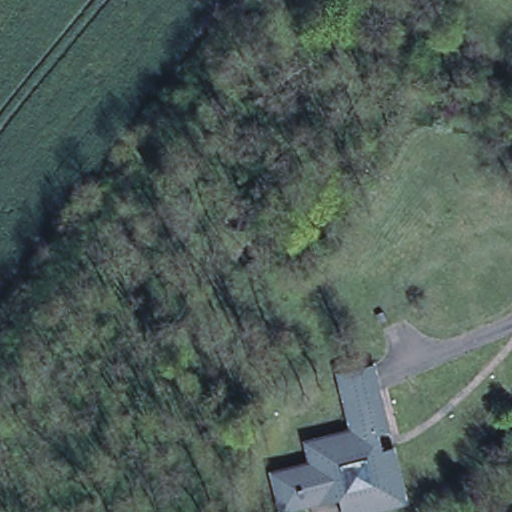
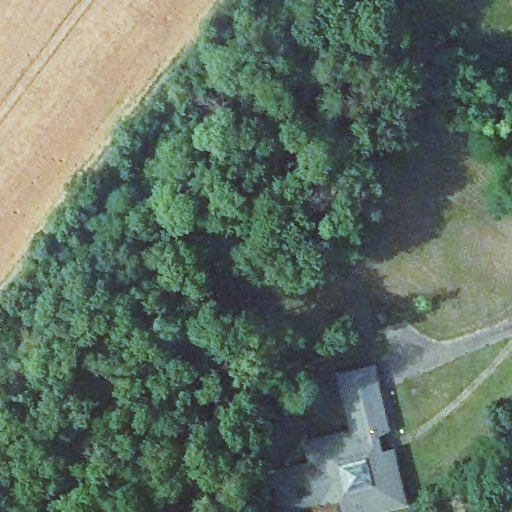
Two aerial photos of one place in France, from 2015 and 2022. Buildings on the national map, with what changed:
unchanged [(387,453),(400,507),(379,512),(337,512),(333,496),(305,503),(305,504),(279,511),(272,480),(308,472),(302,447),(348,436),(334,376),(367,368),(383,435),(375,439),(378,454),(387,453)]

